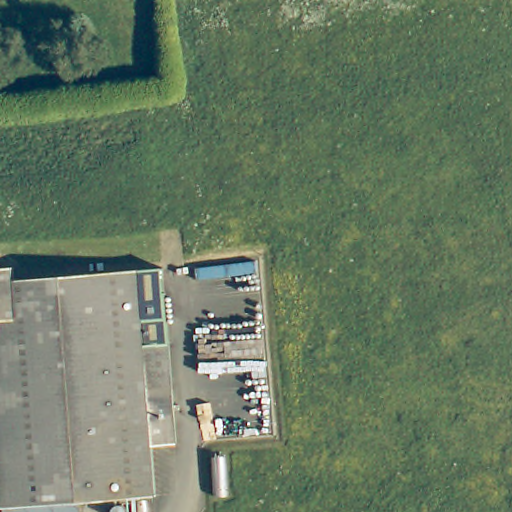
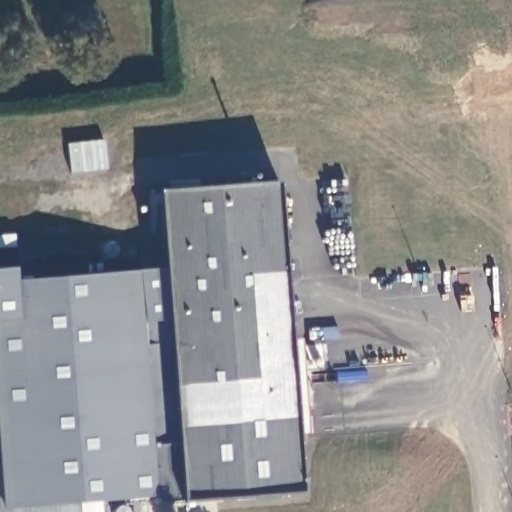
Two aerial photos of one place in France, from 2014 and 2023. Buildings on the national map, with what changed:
new [(165,266),(160,191),(275,182),(290,337),(301,337),(308,431),(298,432),(304,491),(181,502),(157,504),(155,495),(152,443),(175,442),(168,341),(166,290),(140,292),(139,267),(165,266)]
unchanged [(175,442),(152,443),(155,495),(0,506),(0,266),(15,265),(15,277),(139,267),(140,292),(166,290),(168,341),(175,442)]
new [(0,506),(80,501),(80,512),(0,512),(0,506)]
unchanged [(131,508),(132,512),(115,512),(115,507),(118,505),(121,503),(126,503),(129,505),(131,508)]

